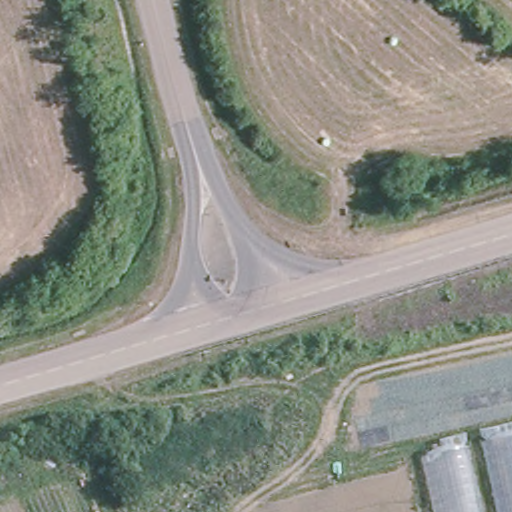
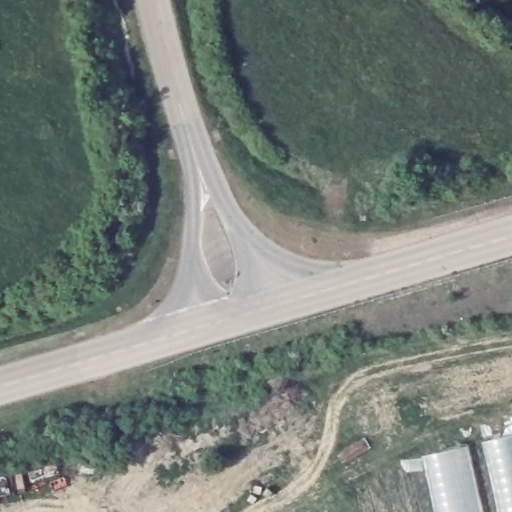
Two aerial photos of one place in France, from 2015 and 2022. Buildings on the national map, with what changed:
unchanged [(512,433),(512,512),(501,512),(485,438),(512,433)]
unchanged [(463,446),(479,512),(439,512),(425,456),(463,446)]

